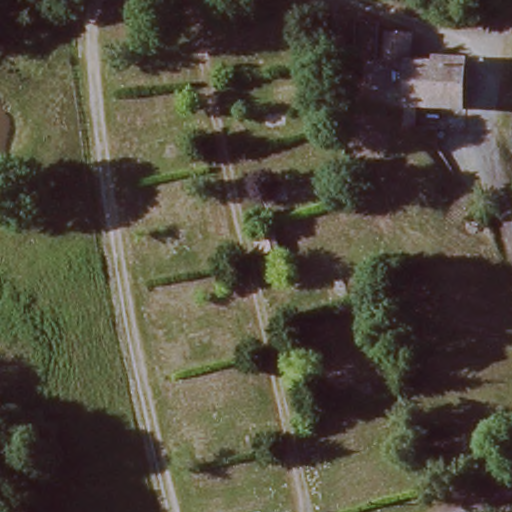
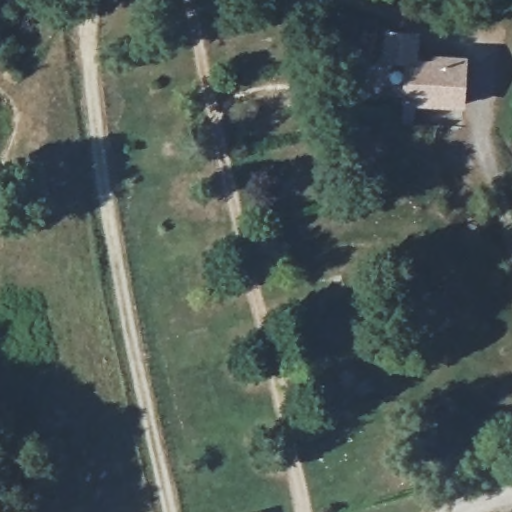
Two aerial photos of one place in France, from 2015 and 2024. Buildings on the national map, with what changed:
unchanged [(404,66),(385,64),(387,34),(412,39),(413,61),(440,61),(442,53),(467,58),(460,111),(404,105),(404,66)]
unchanged [(360,402),(354,377),(369,371),(377,400),(360,402)]

